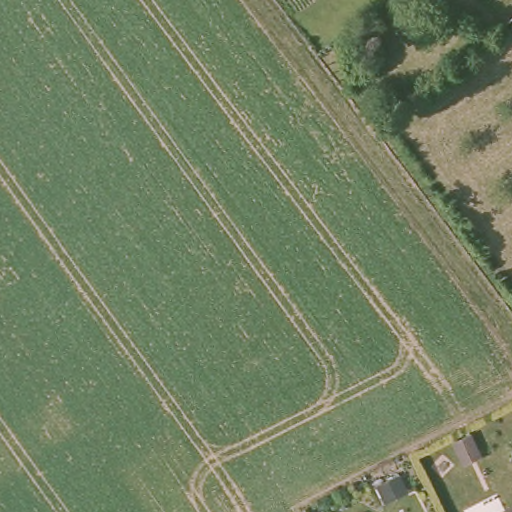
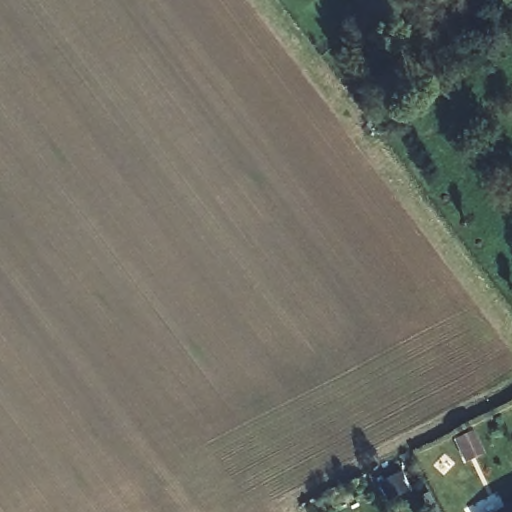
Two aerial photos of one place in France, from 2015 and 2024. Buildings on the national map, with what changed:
unchanged [(394,479),(403,496),(380,508),(371,490),(394,479)]
unchanged [(503,512),(512,507),(512,512),(503,512)]

